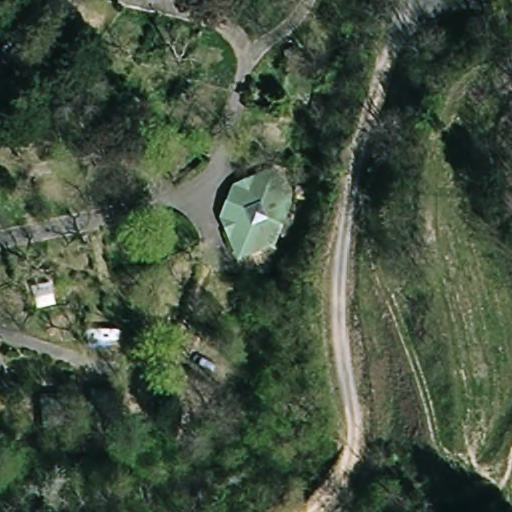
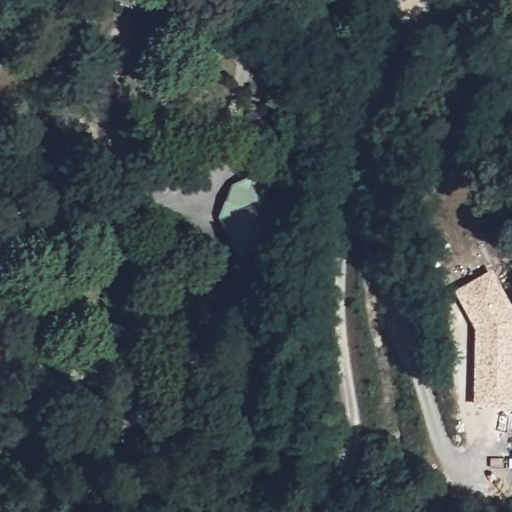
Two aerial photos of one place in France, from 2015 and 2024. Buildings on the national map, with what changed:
unchanged [(279,167),(293,204),(282,237),(241,258),(226,219),(238,185),(279,167)]
new [(512,307),(512,408),(472,405),(476,331),(455,291),(492,270),(512,307)]

